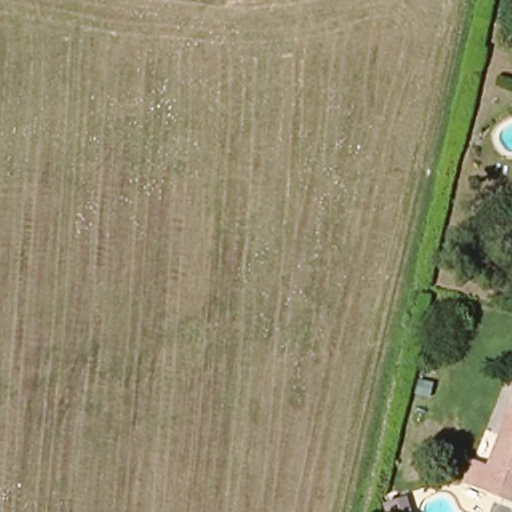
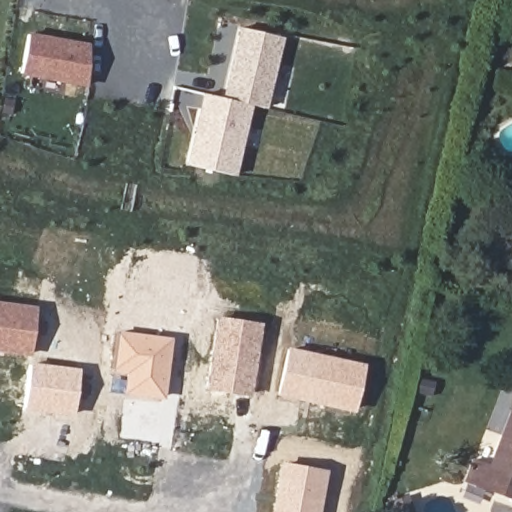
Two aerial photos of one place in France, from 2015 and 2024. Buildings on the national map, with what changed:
new [(241,29),(280,37),(264,108),(225,100),(241,29)]
new [(90,43),(82,86),(21,76),(29,31),(90,43)]
new [(236,176),(185,165),(200,95),(225,100),(250,105),(236,176)]
new [(0,301),(35,306),(29,356),(0,352),(0,301)]
new [(250,397),(205,390),(216,316),(261,323),(250,397)]
new [(164,400),(123,395),(124,386),(127,387),(130,371),(112,370),(119,331),(172,338),(164,400)]
new [(275,396),(286,347),(365,364),(354,413),(275,396)]
new [(74,416),(24,411),(30,363),(80,369),(74,416)]
unchanged [(478,490),(485,475),(489,477),(512,423),(512,503),(478,490)]
new [(319,512),(270,512),(280,461),(327,470),(319,512)]
unchanged [(385,509),(408,502),(412,512),(387,512),(385,509)]

